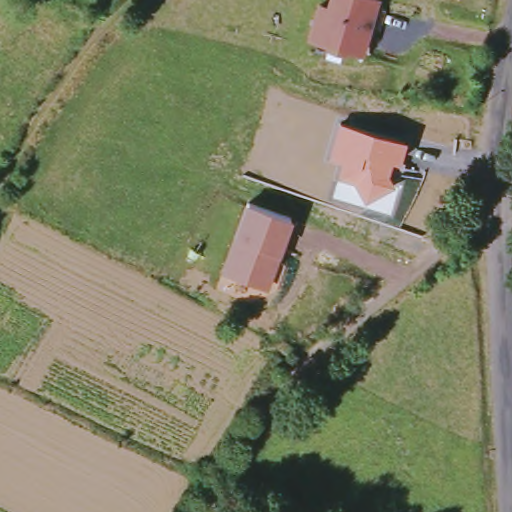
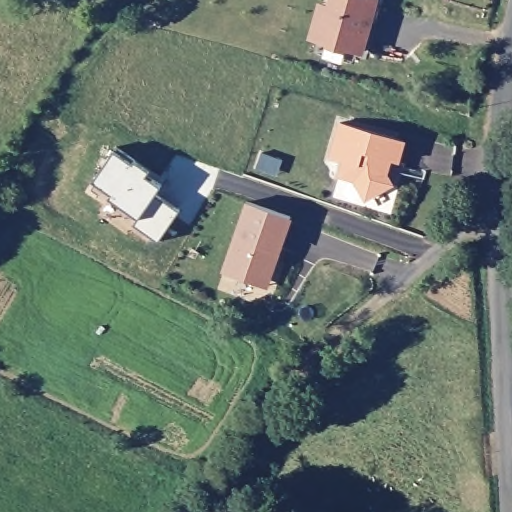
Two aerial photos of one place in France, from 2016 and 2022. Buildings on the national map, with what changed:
unchanged [(328,16),(332,0),(359,0),(375,4),(362,57),(312,45),(320,14),(328,16)]
unchanged [(358,185),(340,180),(346,162),(331,159),(343,124),(409,141),(403,165),(395,161),(390,176),(398,186),(368,204),(358,185)]
new [(158,240),(134,225),(139,219),(110,197),(112,194),(94,181),(114,151),(133,164),(135,161),(149,170),(146,175),(160,185),(154,194),(178,210),(158,240)]
new [(262,154),(281,161),(276,175),(254,170),(262,154)]
unchanged [(269,290),(224,273),(249,202),(297,220),(269,290)]

